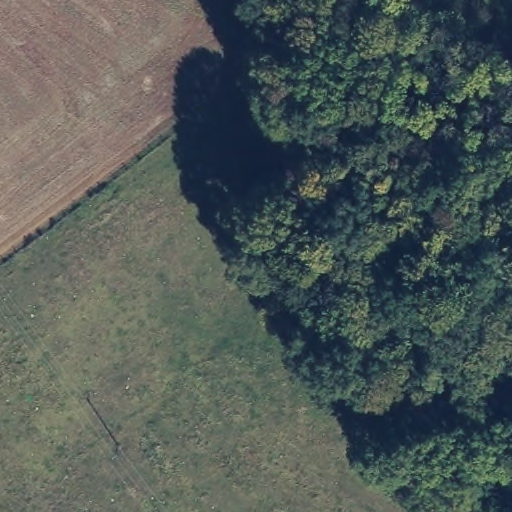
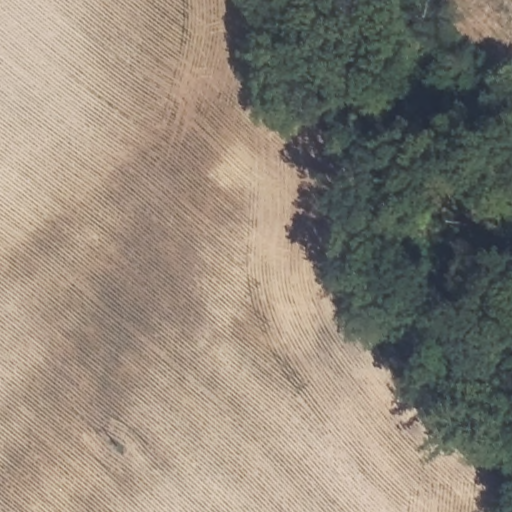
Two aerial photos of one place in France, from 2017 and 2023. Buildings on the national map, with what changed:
unchanged [(292,327),(329,294),(345,312),(307,346),(292,327)]

